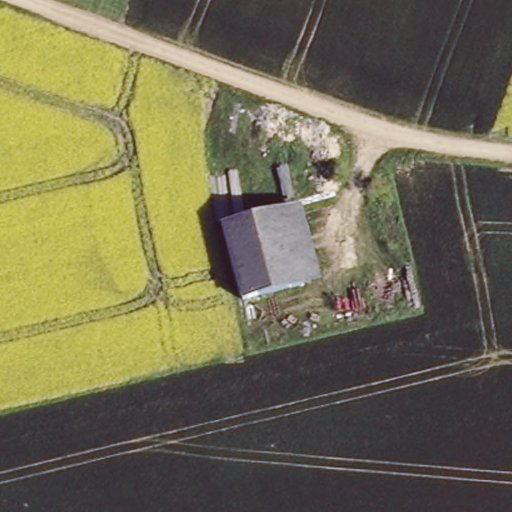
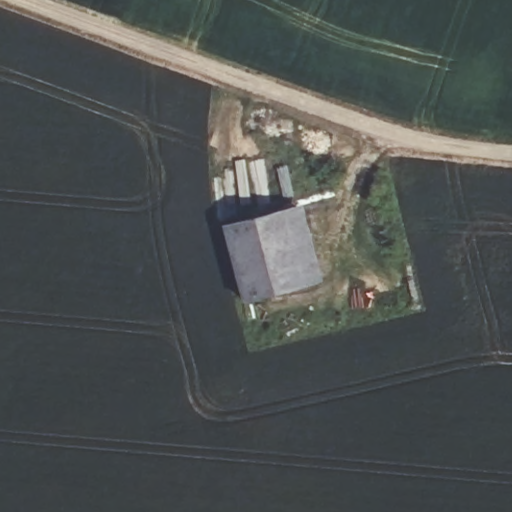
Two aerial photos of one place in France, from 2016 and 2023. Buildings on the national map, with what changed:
unchanged [(321,280),(241,302),(223,221),(300,201),(321,280)]

